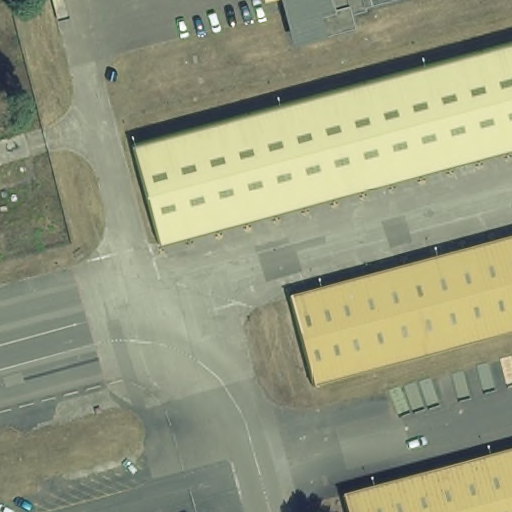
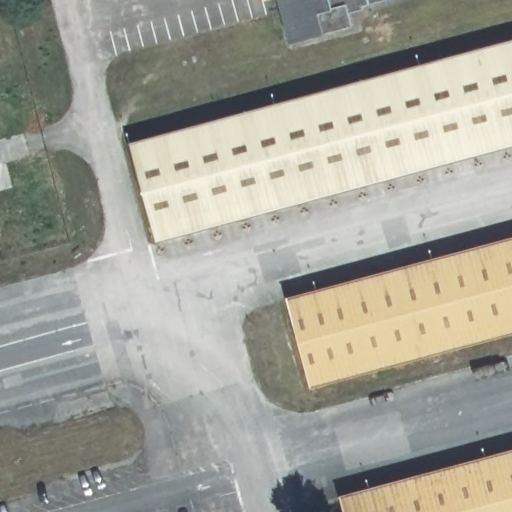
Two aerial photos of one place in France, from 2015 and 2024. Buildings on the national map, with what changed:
unchanged [(351,26),(295,40),(282,0),(391,0),(350,12),(351,26)]
unchanged [(512,144),(158,240),(130,143),(512,40),(512,144)]
unchanged [(289,297),(512,237),(512,332),(313,386),(289,297)]
unchanged [(512,450),(512,512),(348,512),(343,494),(512,450)]

